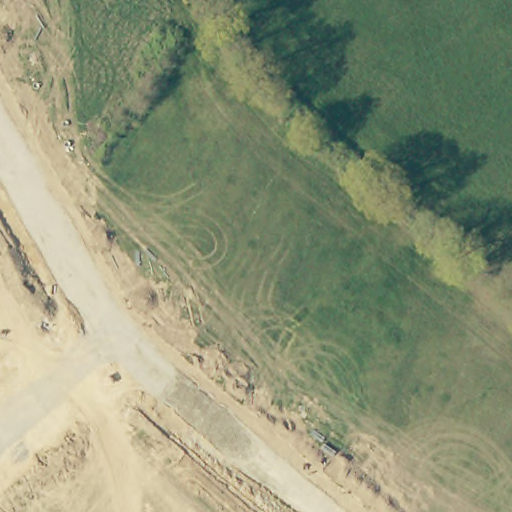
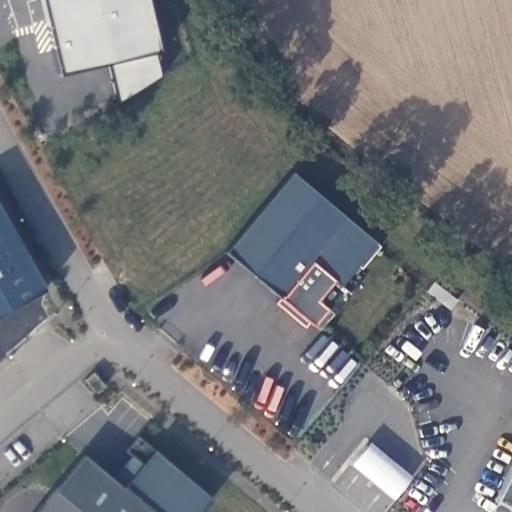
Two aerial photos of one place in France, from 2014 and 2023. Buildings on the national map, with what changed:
new [(159,79),(116,103),(106,65),(58,75),(41,0),(146,0),(158,50),(150,53),(159,79)]
new [(292,174),(374,243),(378,247),(361,269),(357,264),(340,285),(350,295),(331,315),(325,308),(311,324),(281,298),(227,253),(292,174)]
new [(46,290),(0,315),(0,206),(46,290)]
new [(121,488),(142,463),(126,450),(138,436),(153,450),(213,500),(202,512),(150,512),(121,488)]
new [(371,444),(411,477),(393,500),(350,464),(371,444)]
new [(83,456),(150,512),(37,512),(83,456)]
new [(512,509),(495,501),(512,468),(512,509)]

